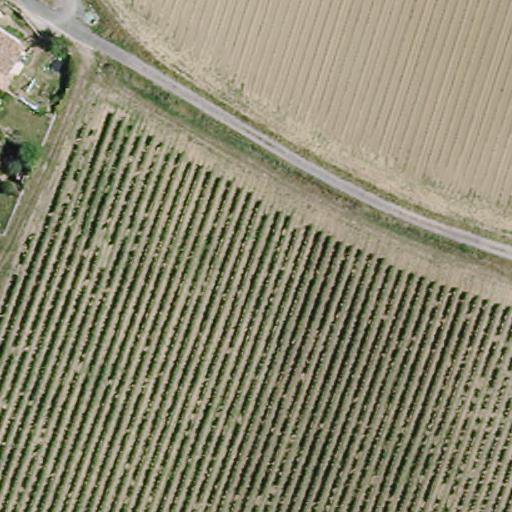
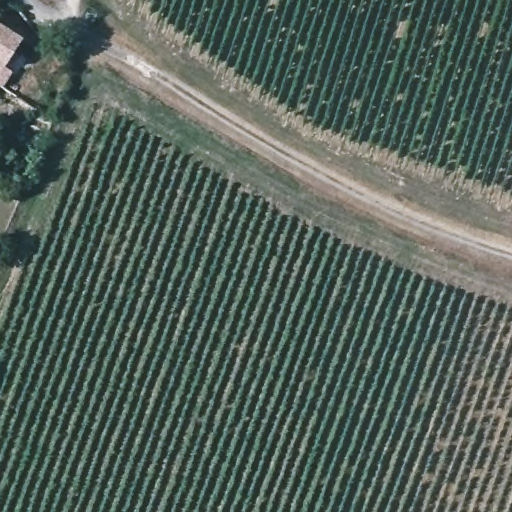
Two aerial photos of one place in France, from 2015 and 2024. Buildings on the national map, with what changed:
unchanged [(25,41),(8,67),(15,71),(5,87),(0,83),(0,26),(25,41)]

